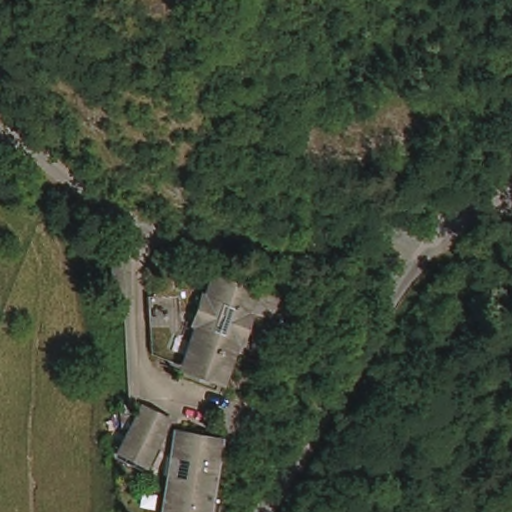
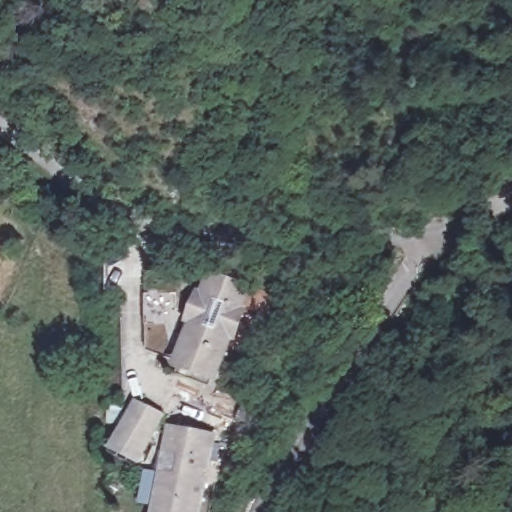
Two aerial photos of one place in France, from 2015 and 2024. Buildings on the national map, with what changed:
unchanged [(187,324),(194,308),(200,310),(211,283),(215,285),(223,266),(255,280),(249,297),(255,300),(244,328),(235,323),(228,339),(236,342),(223,374),(188,359),(175,353),(187,324)]
unchanged [(167,421),(140,463),(112,446),(136,402),(167,421)]
unchanged [(175,485),(177,468),(165,465),(170,441),(207,449),(201,469),(196,468),(193,482),(206,485),(203,500),(195,499),(193,512),(157,512),(158,501),(155,500),(157,483),(175,485)]

